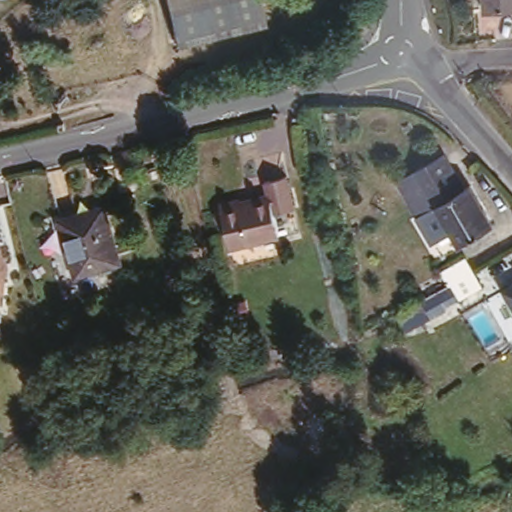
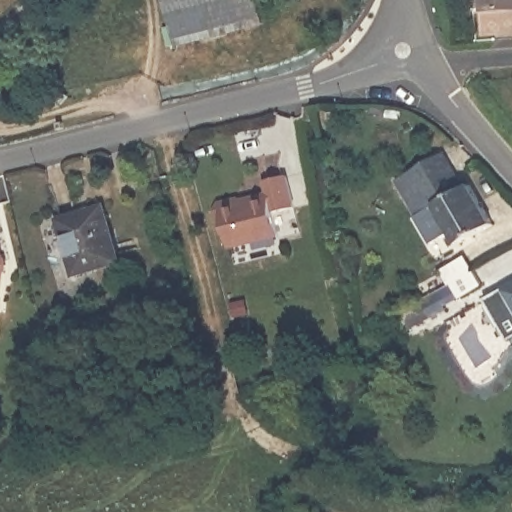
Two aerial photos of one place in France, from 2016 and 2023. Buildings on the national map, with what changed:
unchanged [(166,5),(165,0),(190,0),(166,5)]
unchanged [(190,0),(263,0),(268,24),(177,48),(166,5),(190,0)]
unchanged [(479,0),(512,0),(512,2),(480,5),(479,0)]
unchanged [(401,216),(382,184),(438,151),(458,183),(481,221),(453,239),(428,201),(401,216)]
unchanged [(258,185),(280,177),(291,209),(264,218),(271,237),(227,252),(218,228),(212,230),(205,210),(211,202),(233,195),(236,204),(261,194),(258,185)]
unchanged [(51,218),(98,200),(117,252),(71,270),(51,218)]
unchanged [(4,236),(10,267),(6,297),(0,296),(0,237),(4,236)]
unchanged [(399,313),(452,286),(442,271),(469,256),(485,286),(448,305),(450,308),(408,329),(399,313)]
unchanged [(512,285),(512,299),(505,290),(512,285)]
unchanged [(311,455),(305,415),(324,411),(330,450),(311,455)]

